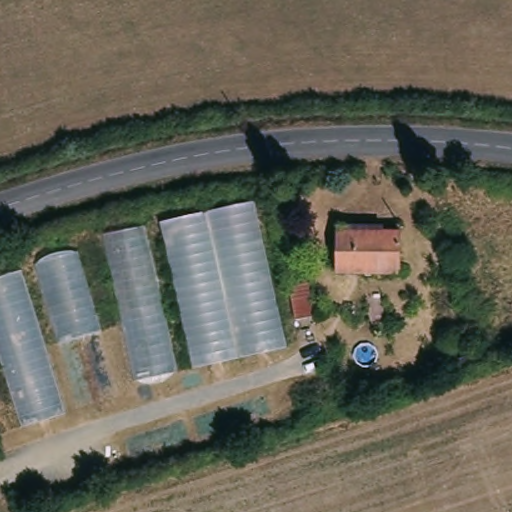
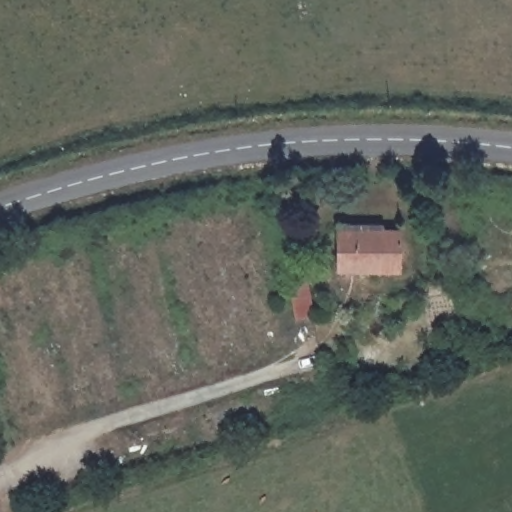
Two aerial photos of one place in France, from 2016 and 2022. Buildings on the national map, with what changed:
demolished [(253,199),(287,341),(193,365),(162,217),(253,199)]
demolished [(145,217),(177,369),(136,379),(105,227),(145,217)]
unchanged [(371,223),(371,230),(400,231),(400,272),(338,270),(339,223),(371,223)]
demolished [(78,246),(102,330),(61,342),(37,258),(78,246)]
demolished [(24,262),(71,410),(19,423),(0,356),(0,269),(24,262)]
unchanged [(312,275),(319,317),(293,318),(291,280),(312,275)]

